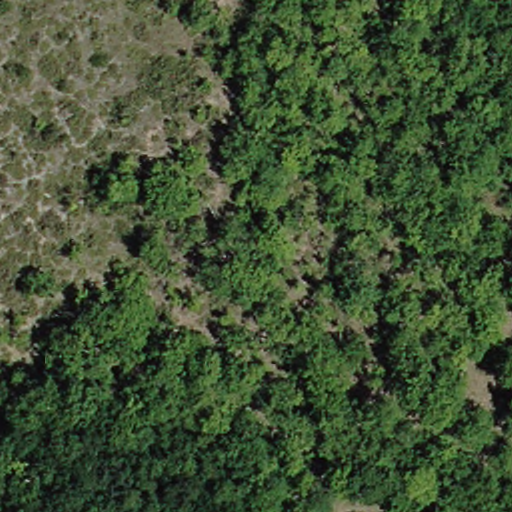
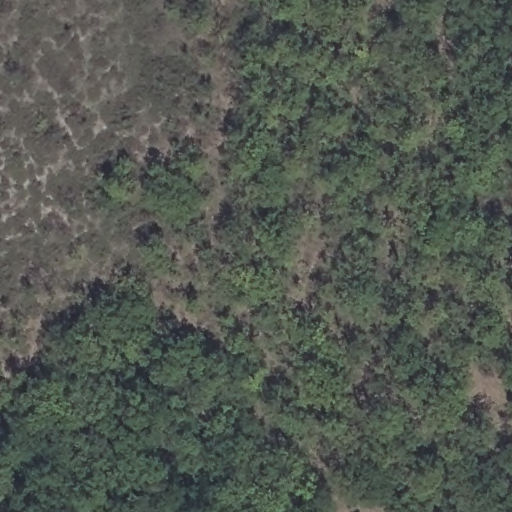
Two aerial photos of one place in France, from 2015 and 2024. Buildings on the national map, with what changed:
[]

